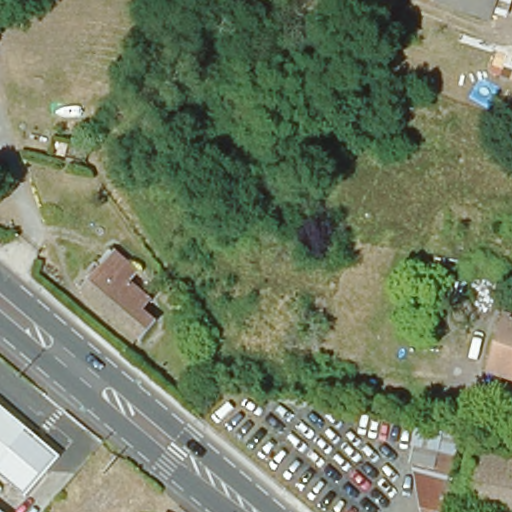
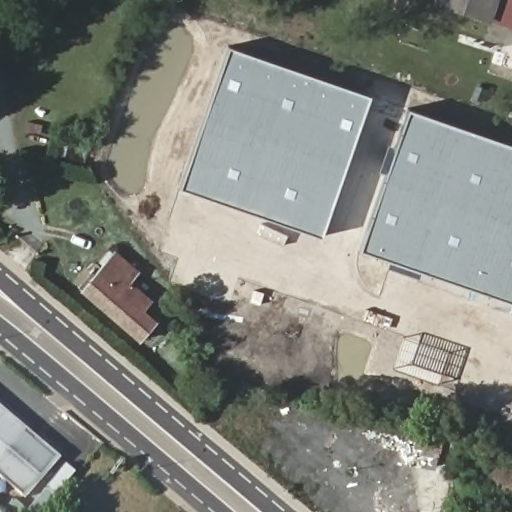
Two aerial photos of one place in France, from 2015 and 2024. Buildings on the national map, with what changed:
unchanged [(446,0),(491,0),(487,14),(446,0)]
new [(179,186),(229,45),(370,95),(320,236),(179,186)]
new [(512,144),(512,303),(358,250),(407,108),(512,144)]
unchanged [(114,253),(137,272),(128,282),(150,301),(142,310),(156,321),(140,341),(82,292),(114,253)]
unchanged [(512,380),(487,373),(507,315),(512,317),(512,380)]
unchanged [(56,455),(19,500),(0,483),(0,408),(56,455)]
unchanged [(415,454),(411,454),(416,435),(438,439),(435,459),(456,463),(449,512),(424,512),(415,454)]
unchanged [(512,456),(512,512),(507,512),(468,505),(477,448),(512,456)]

